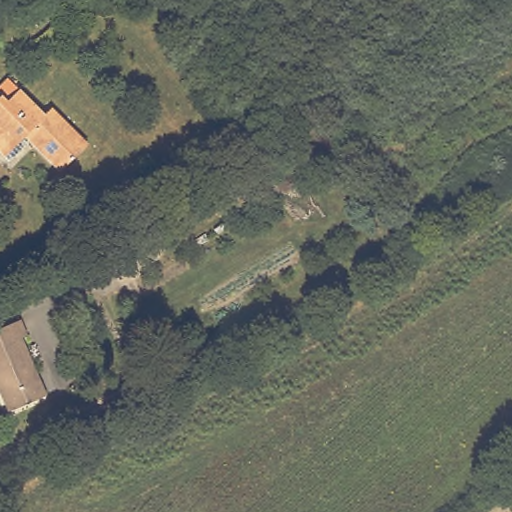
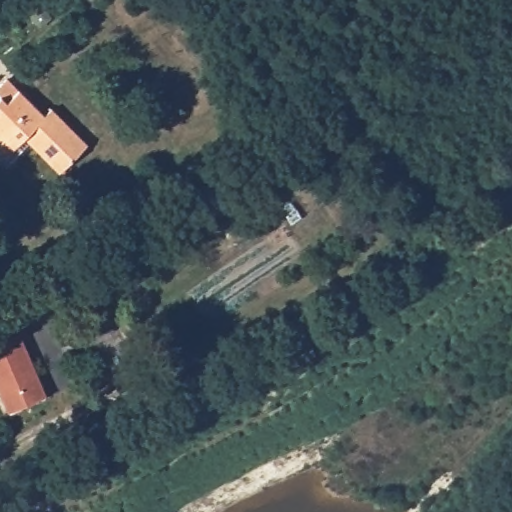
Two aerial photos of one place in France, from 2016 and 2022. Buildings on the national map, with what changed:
unchanged [(4,98),(9,103),(22,91),(47,115),(55,109),(91,145),(63,173),(28,137),(9,157),(0,148),(0,103),(4,98)]
unchanged [(158,246),(110,270),(99,245),(145,221),(158,246)]
unchanged [(18,320),(26,336),(20,339),(44,397),(7,413),(0,396),(0,328),(18,320)]

